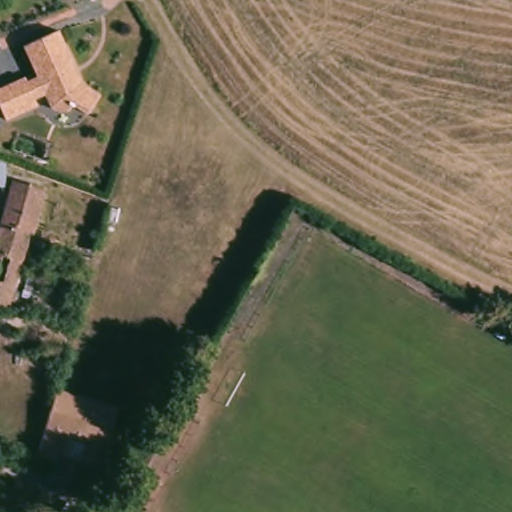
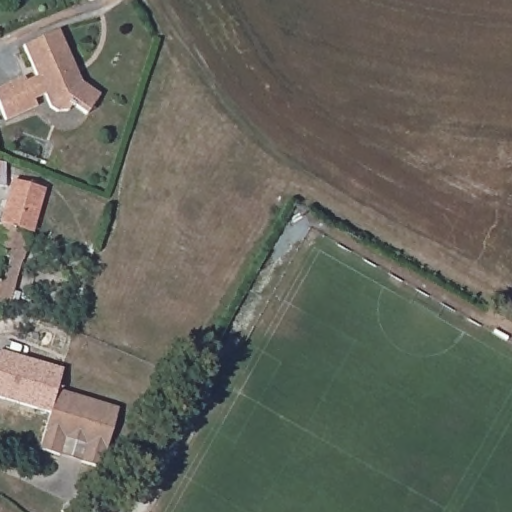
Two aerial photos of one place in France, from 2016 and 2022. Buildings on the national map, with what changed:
unchanged [(25,79),(36,75),(23,45),(57,30),(81,80),(99,93),(86,112),(72,103),(66,110),(51,109),(44,94),(34,99),(36,105),(5,119),(0,107),(0,86),(23,75),(25,79)]
unchanged [(0,190),(0,166),(1,166),(1,190),(0,190)]
unchanged [(1,224),(13,180),(42,189),(31,231),(29,231),(1,224)]
unchanged [(8,308),(0,306),(0,229),(1,224),(29,231),(8,308)]
new [(0,351),(63,368),(57,394),(51,415),(0,401),(0,351)]
unchanged [(40,454),(57,394),(119,411),(101,472),(80,466),(59,460),(40,454)]
unchanged [(74,507),(71,512),(64,512),(62,511),(67,503),(74,507)]

